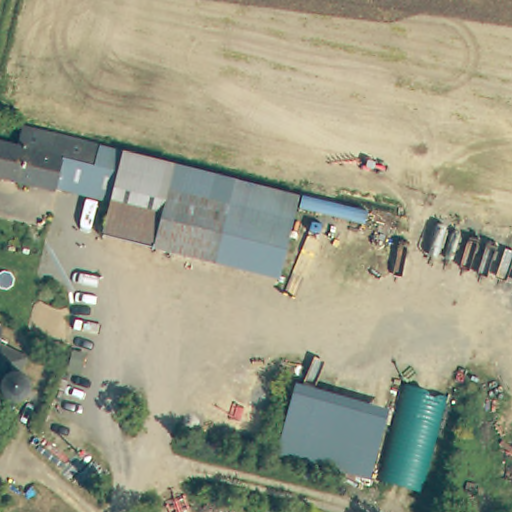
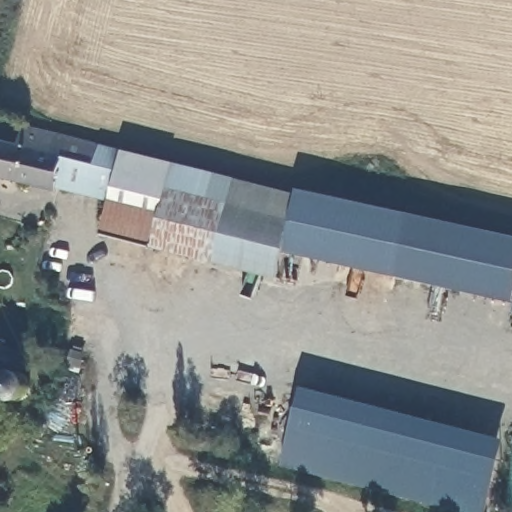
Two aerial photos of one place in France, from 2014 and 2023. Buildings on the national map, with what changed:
unchanged [(18,146),(21,127),(63,137),(65,137),(55,187),(54,192),(0,178),(0,142),(18,146)]
unchanged [(65,137),(100,146),(124,150),(115,198),(55,187),(65,137)]
unchanged [(108,234),(115,198),(124,150),(175,157),(296,184),(281,268),(166,246),(108,234)]
new [(512,236),(512,301),(284,252),(295,189),(512,236)]
unchanged [(0,333),(0,327),(1,327),(0,333)]
unchanged [(32,385),(31,392),(30,397),(26,402),(20,405),(12,406),(5,404),(2,402),(0,400),(0,376),(2,374),(6,372),(10,370),(14,369),(18,369),(31,380),(32,385)]
unchanged [(367,481),(274,459),(293,383),(388,408),(367,481)]
unchanged [(408,387),(444,396),(418,491),(381,480),(408,387)]

